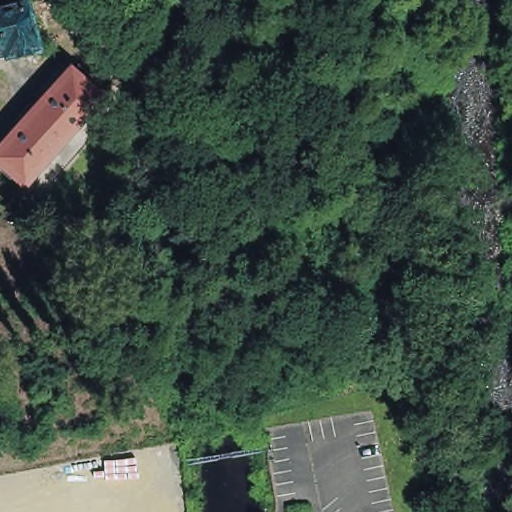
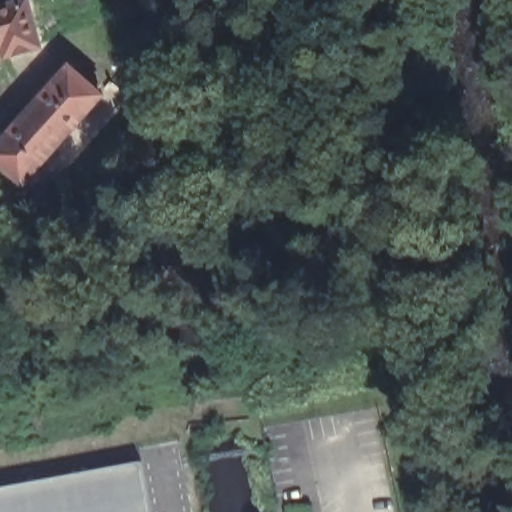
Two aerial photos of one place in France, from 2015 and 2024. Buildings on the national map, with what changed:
unchanged [(0,45),(0,43),(2,43),(0,35),(0,6),(20,0),(22,0),(22,2),(30,0),(38,0),(44,23),(30,27),(35,45),(2,54),(0,45)]
unchanged [(0,43),(0,35),(2,43),(0,43)]
unchanged [(0,144),(66,71),(97,99),(19,186),(0,170),(0,144)]
new [(0,488),(142,462),(151,512),(0,512),(0,488)]

